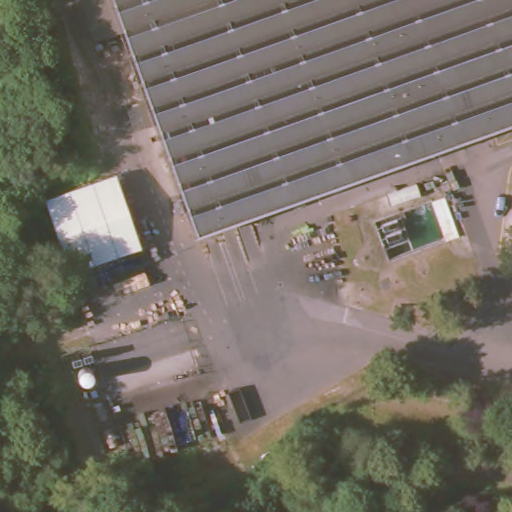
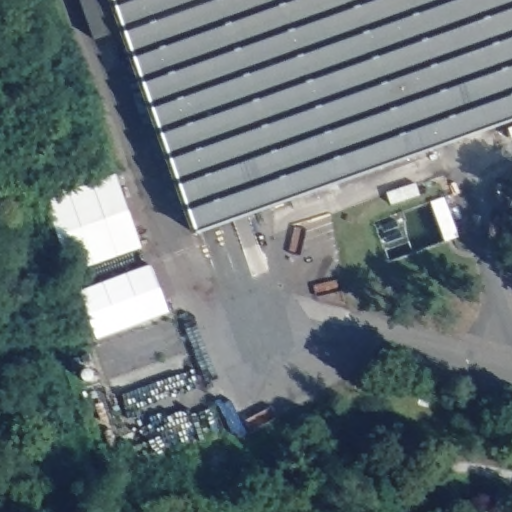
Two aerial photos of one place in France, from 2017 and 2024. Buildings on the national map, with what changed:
unchanged [(197,229),(113,0),(512,0),(512,116),(197,229)]
unchanged [(67,274),(42,201),(115,175),(142,252),(67,274)]
unchanged [(456,237),(444,241),(430,204),(442,199),(456,237)]
new [(107,335),(90,287),(151,264),(169,312),(107,335)]

